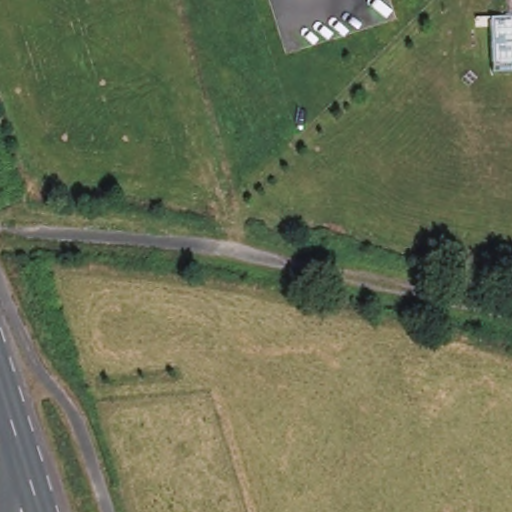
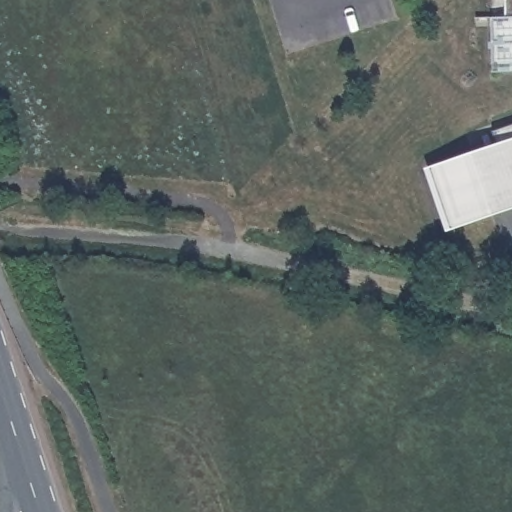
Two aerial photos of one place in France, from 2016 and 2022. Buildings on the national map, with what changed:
unchanged [(508,17),(507,0),(512,0),(512,73),(492,73),(491,18),(508,17)]
new [(512,203),(449,224),(432,174),(430,167),(496,144),(491,131),(512,124),(512,203)]
new [(512,210),(451,230),(449,224),(512,203),(512,210)]

